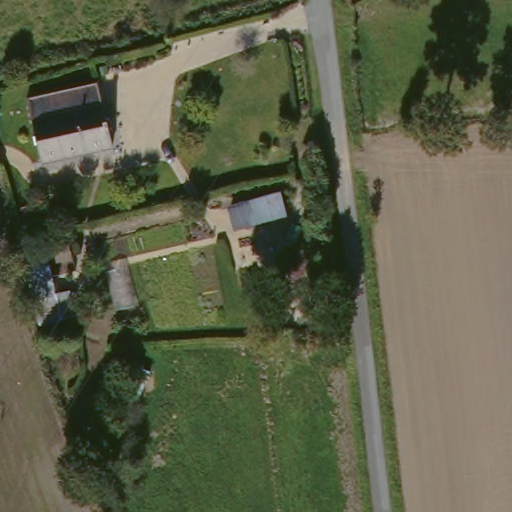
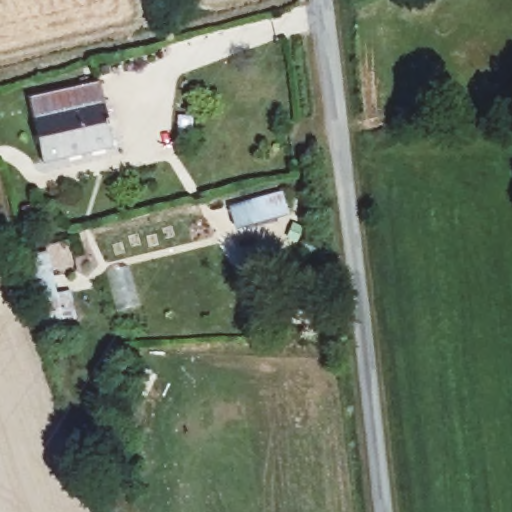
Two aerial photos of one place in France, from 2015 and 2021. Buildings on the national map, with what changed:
unchanged [(28,81),(95,66),(116,148),(45,158),(28,81)]
unchanged [(220,210),(283,196),(291,227),(234,242),(220,210)]
unchanged [(23,252),(50,247),(59,294),(73,290),(82,329),(40,336),(23,252)]

